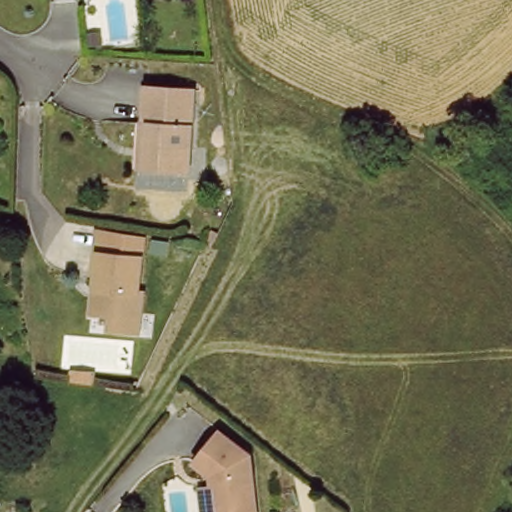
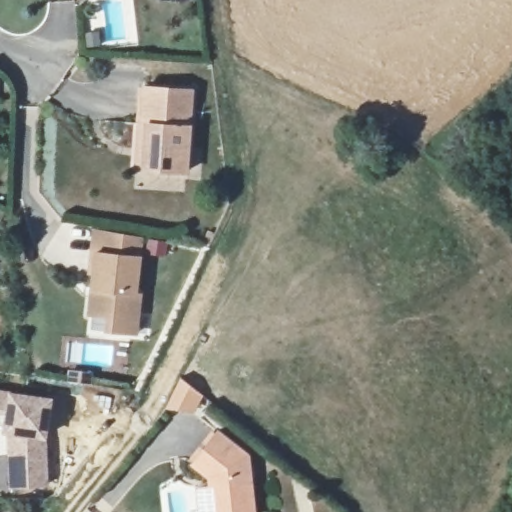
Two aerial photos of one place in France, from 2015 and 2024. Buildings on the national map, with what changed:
unchanged [(151,123),(146,123),(148,86),(196,89),(190,171),(148,168),(151,123)]
unchanged [(133,352),(111,349),(112,335),(93,333),(96,314),(106,315),(107,308),(96,307),(100,271),(103,249),(146,253),(143,276),(140,311),(145,311),(142,335),(140,353),(133,352)]
new [(10,390),(53,397),(47,442),(49,485),(9,493),(6,435),(1,435),(2,427),(0,427),(0,389),(10,390)]
unchanged [(217,491),(216,480),(200,467),(225,435),(254,459),(260,512),(209,512),(206,492),(217,491)]

